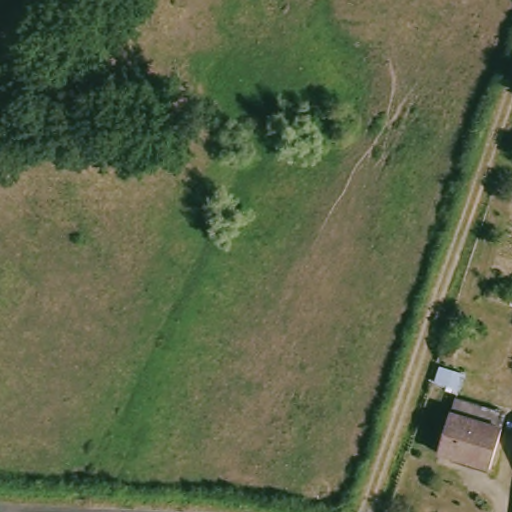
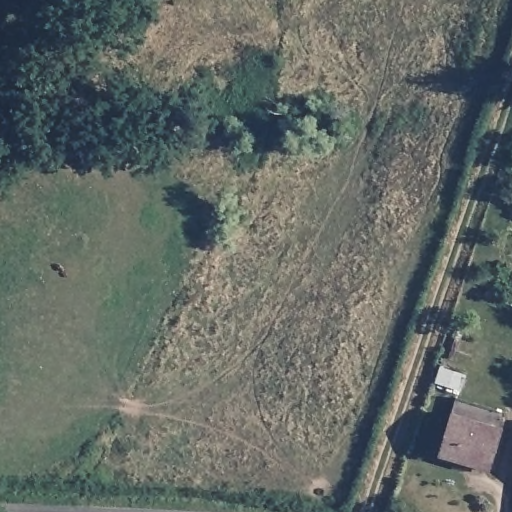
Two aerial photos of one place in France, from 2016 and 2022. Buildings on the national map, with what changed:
unchanged [(448,396),(499,411),(495,425),(488,449),(482,468),(431,453),(435,441),(443,412),(448,396)]
unchanged [(512,496),(512,512),(510,512),(512,496)]

